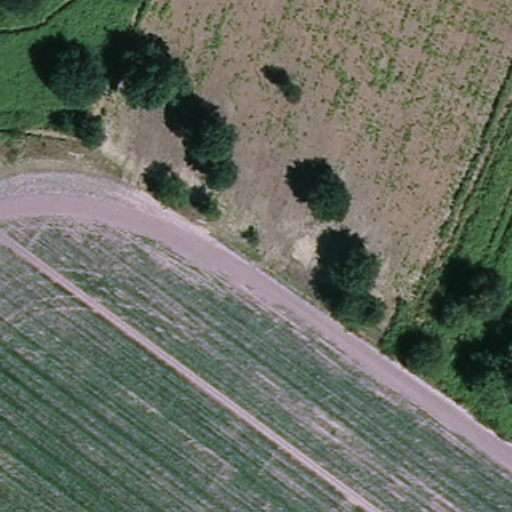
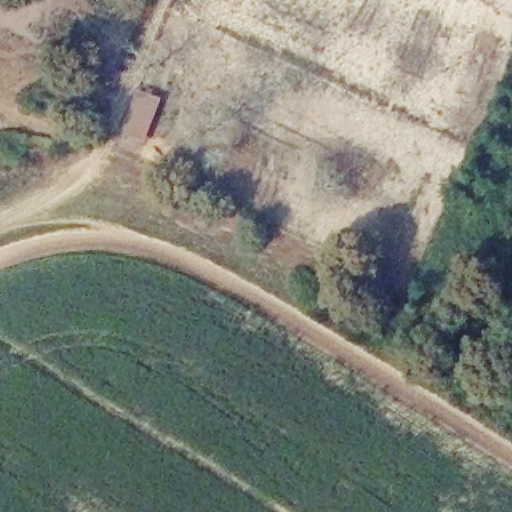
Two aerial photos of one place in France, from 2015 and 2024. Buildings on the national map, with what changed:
new [(145,144),(120,135),(137,91),(162,101),(145,144)]

